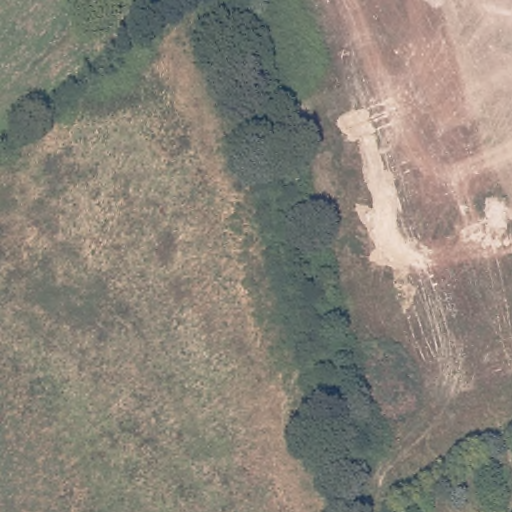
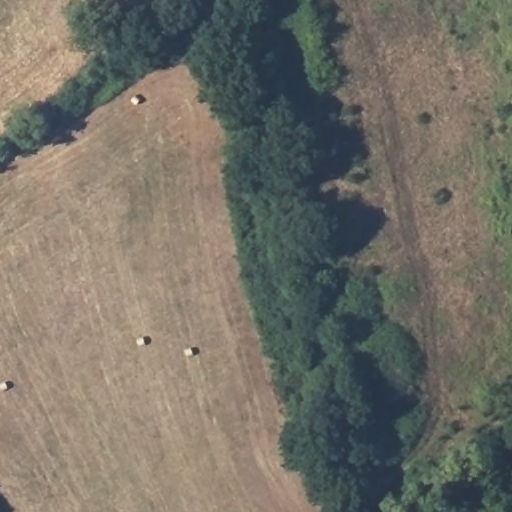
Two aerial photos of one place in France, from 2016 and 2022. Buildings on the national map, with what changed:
[]

